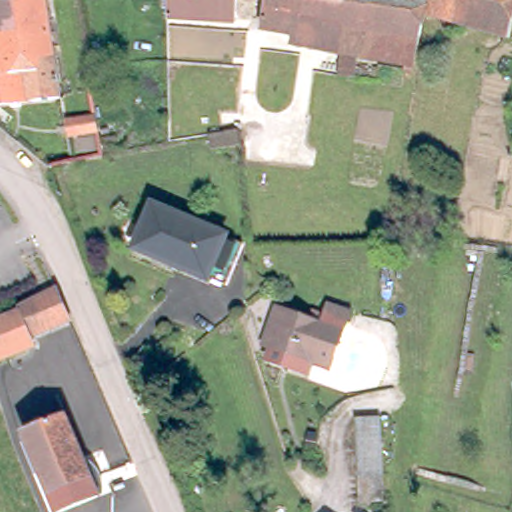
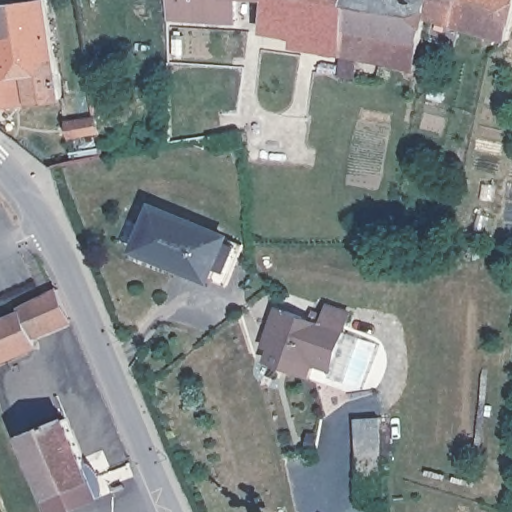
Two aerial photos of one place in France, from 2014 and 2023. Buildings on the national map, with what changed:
unchanged [(62,102),(0,109),(0,0),(16,0),(17,4),(36,1),(46,1),(62,102)]
unchanged [(234,0),(235,18),(207,16),(207,0),(234,0)]
unchanged [(423,9),(416,61),(413,65),(407,64),(408,59),(293,39),(295,29),(264,24),(266,0),(426,0),(424,10),(423,9)]
unchanged [(424,10),(426,0),(512,0),(512,34),(439,14),(424,10)]
unchanged [(357,57),(357,58),(353,75),(338,73),(341,55),(357,57)]
unchanged [(101,133),(81,135),(78,120),(98,118),(101,133)]
unchanged [(212,278),(173,268),(175,260),(134,249),(147,205),(221,227),(226,229),(212,278)]
unchanged [(56,290),(71,320),(33,337),(33,336),(30,337),(20,314),(18,309),(56,290)]
unchanged [(260,345),(271,305),(340,323),(330,365),(308,359),(286,352),(260,345)]
unchanged [(30,337),(33,336),(33,337),(37,346),(0,362),(0,322),(20,314),(30,337)]
unchanged [(66,418),(101,498),(68,512),(58,512),(24,436),(66,418)]
unchanged [(357,504),(357,419),(381,419),(382,504),(357,504)]

